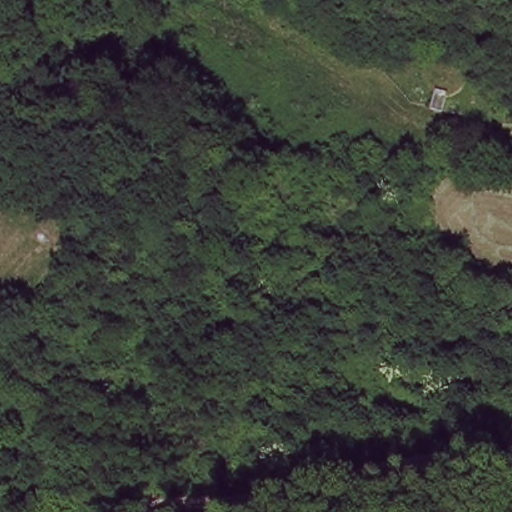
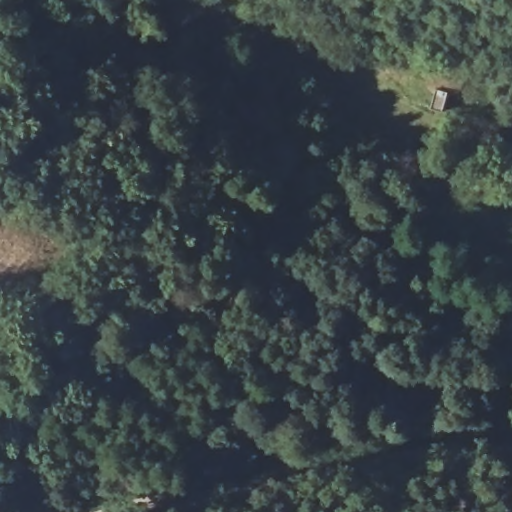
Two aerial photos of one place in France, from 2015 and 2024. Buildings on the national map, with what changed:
unchanged [(425,171),(428,159),(431,149),(430,146),(427,140),(426,137),(426,132),(427,130),(429,125),(430,123),(431,120),(434,118),(439,117),(445,117),(449,117),(454,119),(457,121),(460,124),(461,129),(461,134),(461,139),(461,143),(459,147),(456,150),(452,154),(450,155),(447,155),(446,157),(443,165),(440,175),(425,171)]

